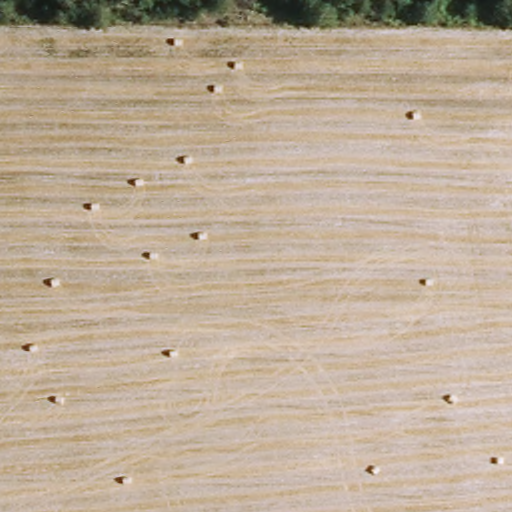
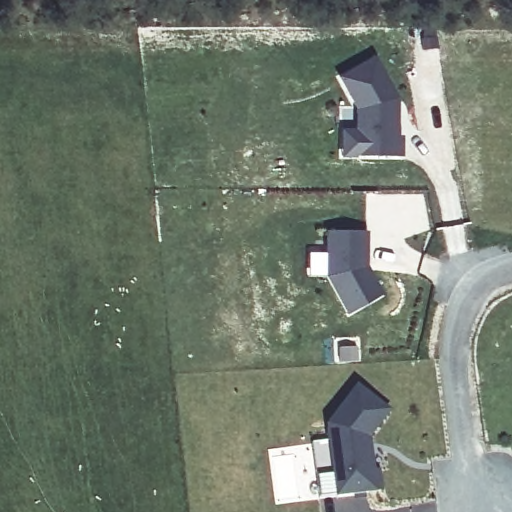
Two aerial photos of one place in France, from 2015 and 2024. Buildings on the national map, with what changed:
new [(355,130),(355,108),(338,77),(371,58),(392,99),(392,110),(397,110),(397,156),(353,155),(338,155),(339,130),(355,130)]
new [(326,230),(363,231),(362,267),(378,296),(345,313),(325,277),(326,230)]
new [(390,412),(368,441),(372,472),(380,472),(382,494),(337,501),(335,496),(320,498),(313,443),(327,442),(326,427),(356,387),(390,412)]

